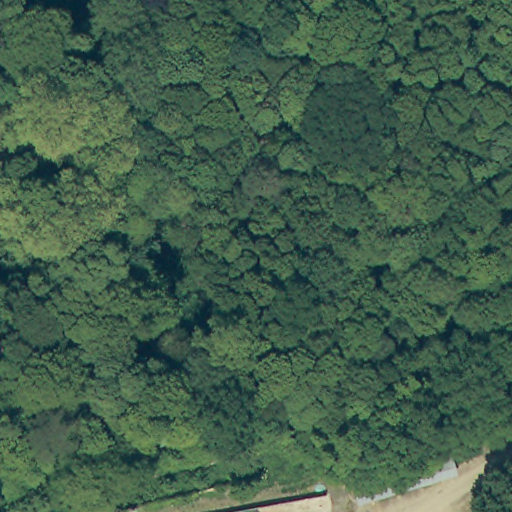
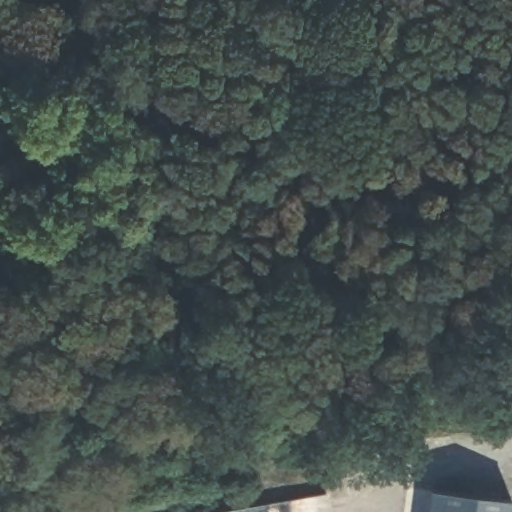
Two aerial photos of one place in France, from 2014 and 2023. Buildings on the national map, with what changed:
unchanged [(502,414),(506,438),(494,440),(489,416),(502,414)]
new [(511,512),(431,512),(433,492),(512,501),(511,512)]
unchanged [(144,512),(119,512),(118,509),(142,503),(144,512)]

